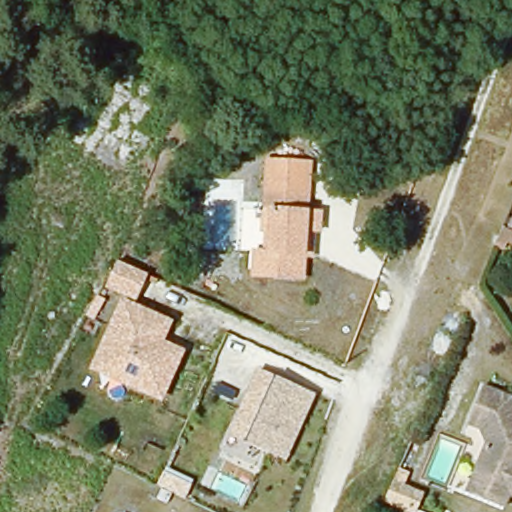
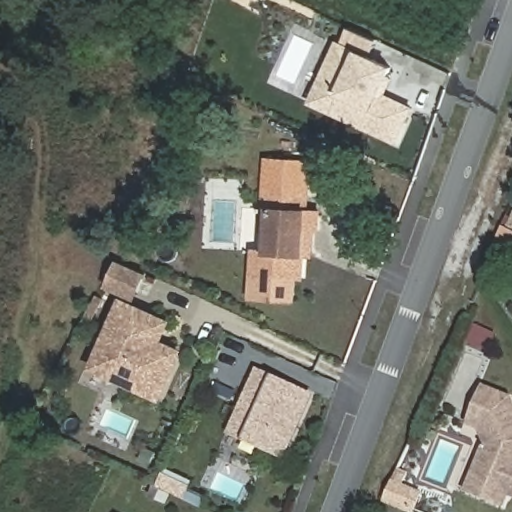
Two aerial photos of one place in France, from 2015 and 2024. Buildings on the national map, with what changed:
new [(342,43),(348,29),(378,41),(372,59),(394,68),(390,76),(395,79),(386,96),(415,108),(397,144),(308,103),(335,40),(342,43)]
unchanged [(261,157),(315,160),(311,211),(302,210),(303,194),(257,191),(261,157)]
unchanged [(296,286),(250,280),(251,248),(266,250),(269,214),(254,213),(257,191),(303,194),(302,210),(311,211),(323,213),(321,239),(300,236),(296,286)]
unchanged [(512,230),(512,241),(499,234),(502,225),(512,230)]
new [(118,264),(144,277),(132,300),(105,287),(118,264)]
unchanged [(157,343),(179,353),(160,395),(95,368),(123,304),(166,321),(157,343)]
unchanged [(287,459),(226,434),(258,367),(316,394),(287,459)]
unchanged [(470,477),(485,442),(480,427),(466,422),(482,385),(510,397),(512,402),(512,494),(508,492),(502,506),(465,491),(470,477)]
unchanged [(162,471),(191,486),(179,508),(149,493),(162,471)]
unchanged [(406,512),(383,502),(392,480),(423,493),(416,512),(406,512)]

